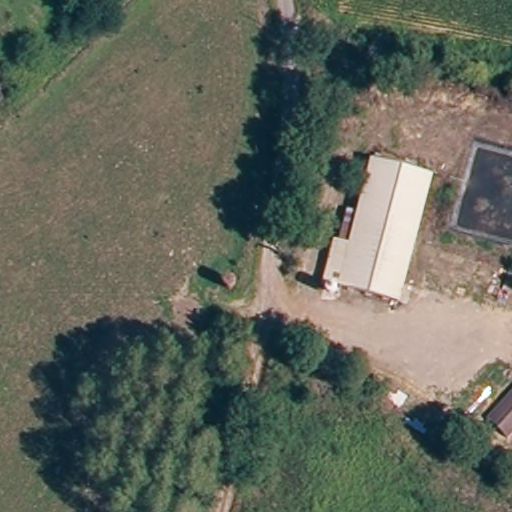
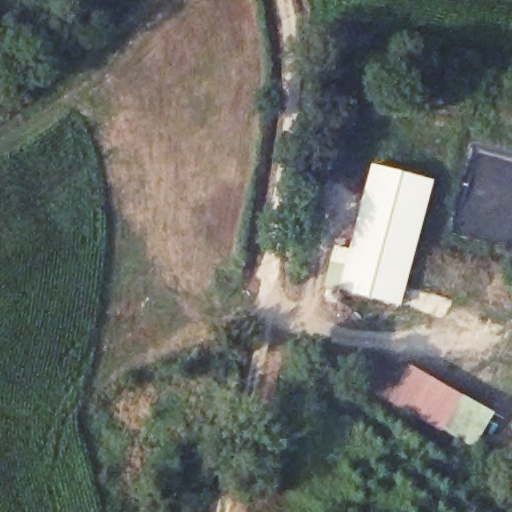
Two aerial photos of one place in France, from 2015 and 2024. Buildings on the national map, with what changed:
unchanged [(432,178),(394,303),(322,281),(334,241),(350,247),(376,161),(432,178)]
new [(471,450),(390,402),(410,367),(492,416),(471,450)]

